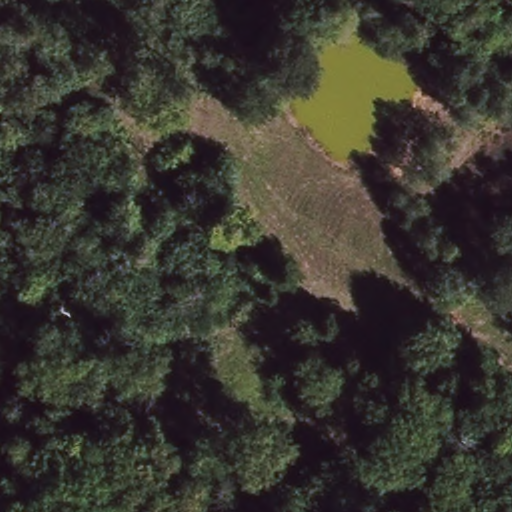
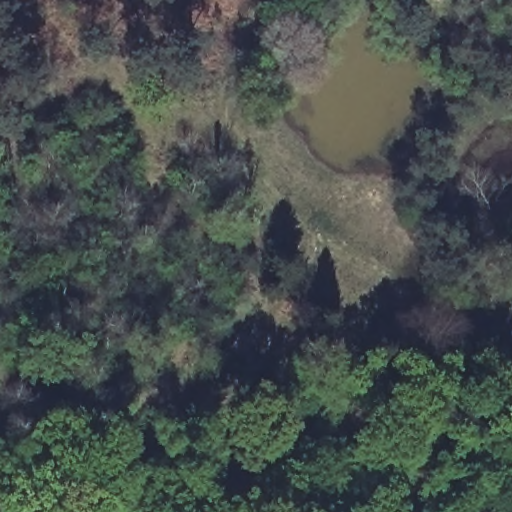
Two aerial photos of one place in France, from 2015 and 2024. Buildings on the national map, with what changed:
[]

